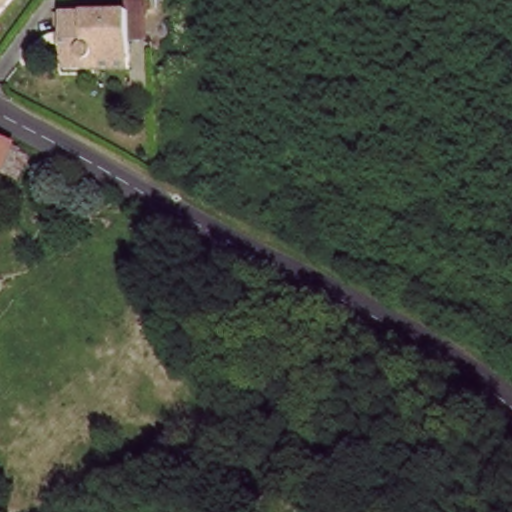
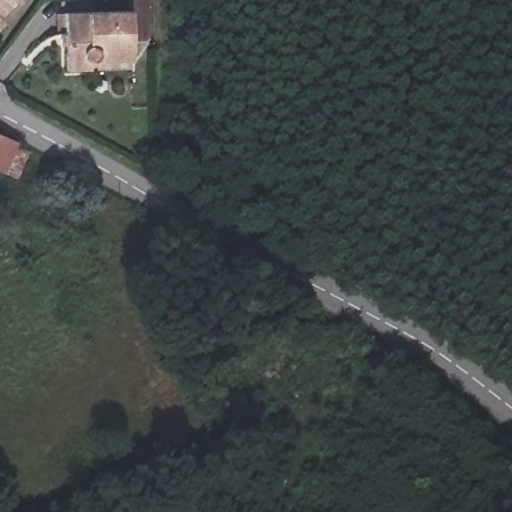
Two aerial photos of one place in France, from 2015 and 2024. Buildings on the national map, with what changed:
unchanged [(32,0),(0,22),(0,0),(32,0)]
unchanged [(103,73),(80,79),(65,21),(127,6),(136,44),(141,65),(103,73)]
unchanged [(10,150),(0,171),(0,144),(10,150)]

